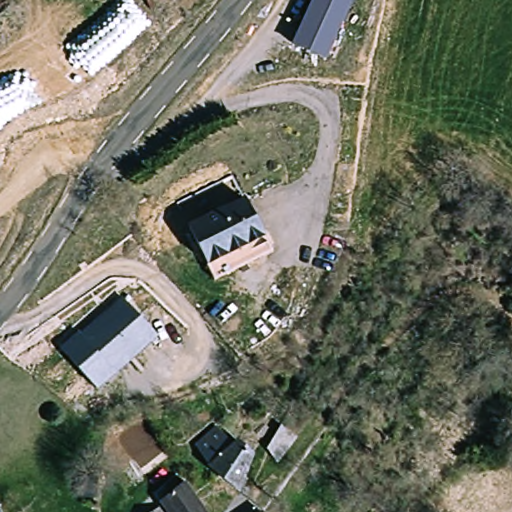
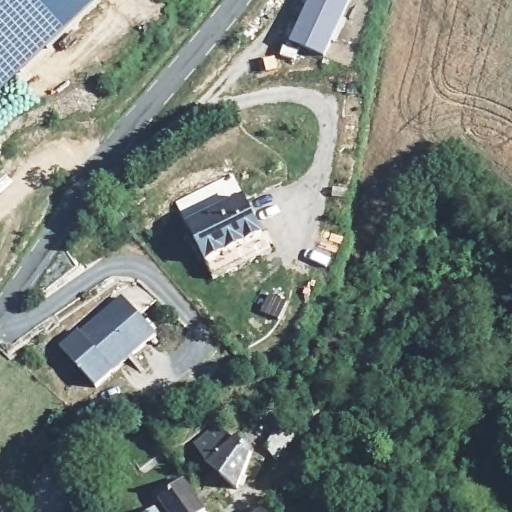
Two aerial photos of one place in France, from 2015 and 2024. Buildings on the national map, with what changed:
new [(0,0),(100,0),(0,97),(0,0)]
unchanged [(311,0),(352,0),(324,61),(290,45),(311,0)]
unchanged [(207,268),(185,229),(241,198),(263,237),(207,268)]
unchanged [(271,251),(215,282),(207,268),(263,237),(271,251)]
unchanged [(159,332),(99,382),(66,343),(126,293),(159,332)]
unchanged [(293,437),(278,462),(265,452),(278,426),(293,437)]
unchanged [(225,480),(217,473),(209,462),(196,442),(218,428),(228,444),(234,439),(250,452),(235,488),(225,480)]
unchanged [(198,509),(200,512),(161,512),(156,504),(181,486),(198,509)]
unchanged [(256,512),(260,508),(263,512),(256,512)]
unchanged [(154,512),(149,512),(152,510),(154,512)]

